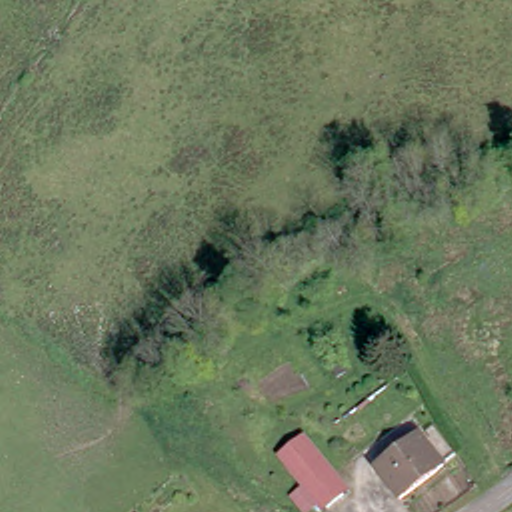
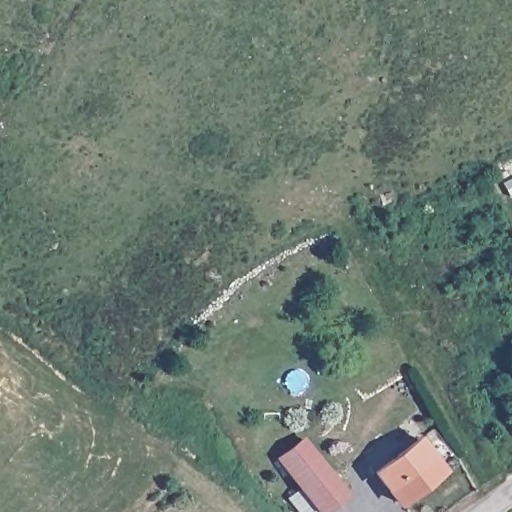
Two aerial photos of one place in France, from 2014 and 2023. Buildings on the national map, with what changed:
unchanged [(293,490),(308,480),(287,450),(307,435),(351,491),(329,509),(322,500),(307,509),(293,490)]
unchanged [(400,500),(377,469),(423,435),(444,469),(400,500)]

